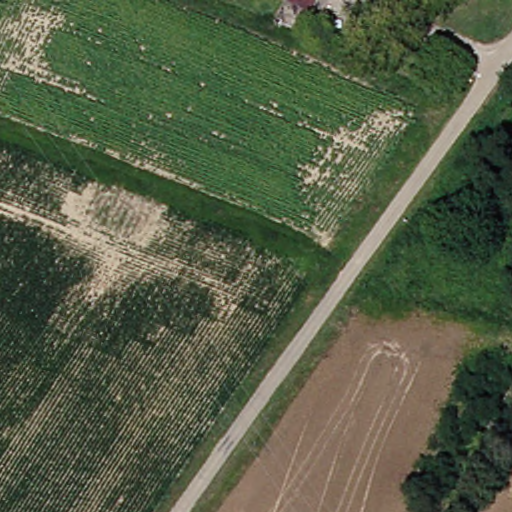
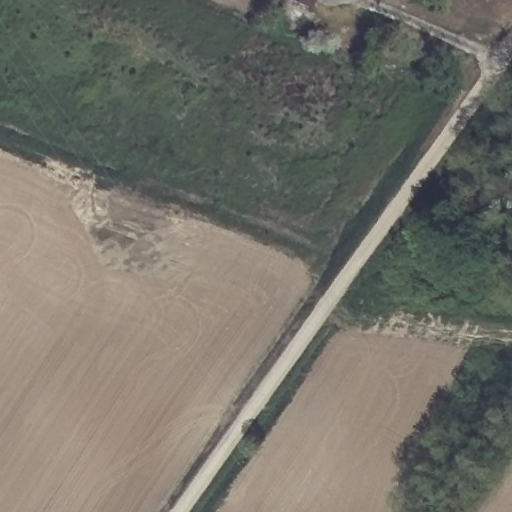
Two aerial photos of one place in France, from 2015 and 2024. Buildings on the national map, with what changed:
unchanged [(285,0),(305,0),(303,6),(285,0)]
unchanged [(338,0),(350,0),(348,5),(338,0)]

